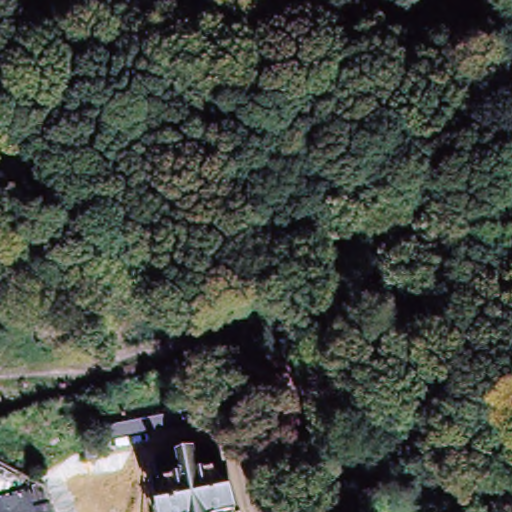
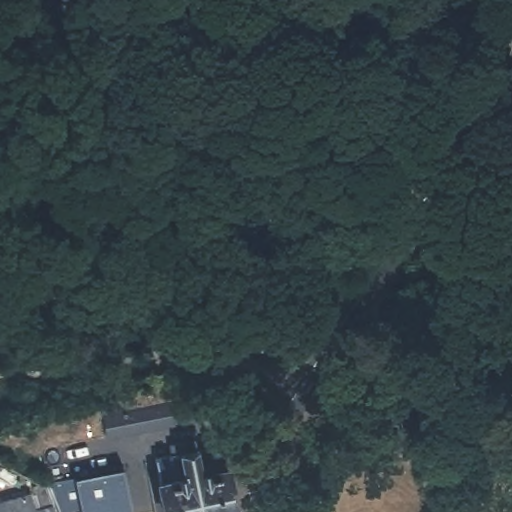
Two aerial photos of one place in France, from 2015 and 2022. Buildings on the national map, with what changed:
unchanged [(214,423),(108,448),(103,424),(209,400),(214,423)]
unchanged [(155,476),(171,472),(169,463),(195,456),(197,465),(220,460),(232,512),(163,512),(155,476)]
new [(73,478),(121,467),(130,512),(60,512),(49,483),(73,478)]
unchanged [(0,504),(47,492),(49,492),(57,512),(0,512),(0,504)]
demolished [(153,498),(156,512),(83,512),(153,498)]

